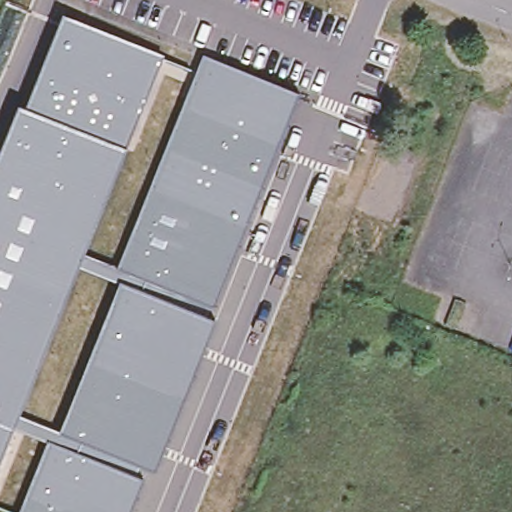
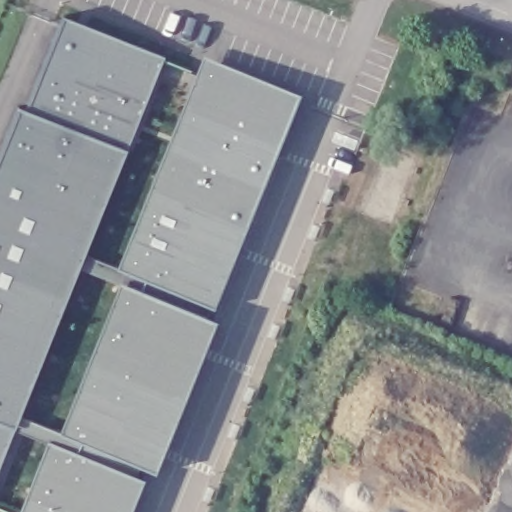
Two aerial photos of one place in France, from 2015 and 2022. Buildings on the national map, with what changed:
unchanged [(18,107),(25,110),(62,16),(165,57),(125,149),(85,252),(117,265),(203,56),(297,92),(215,307),(210,319),(213,321),(155,470),(142,464),(137,477),(142,480),(129,512),(20,512),(48,441),(12,428),(0,462),(0,152),(18,107)]

